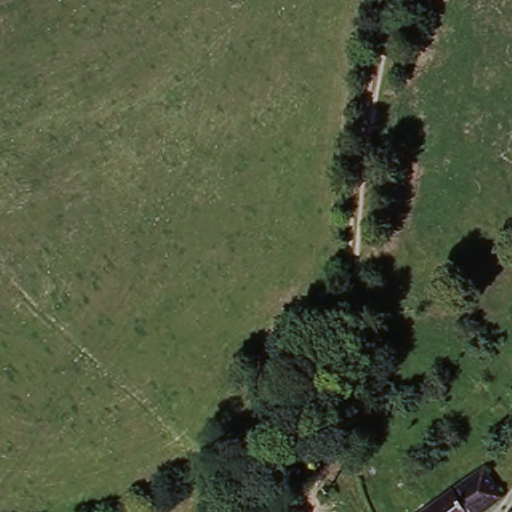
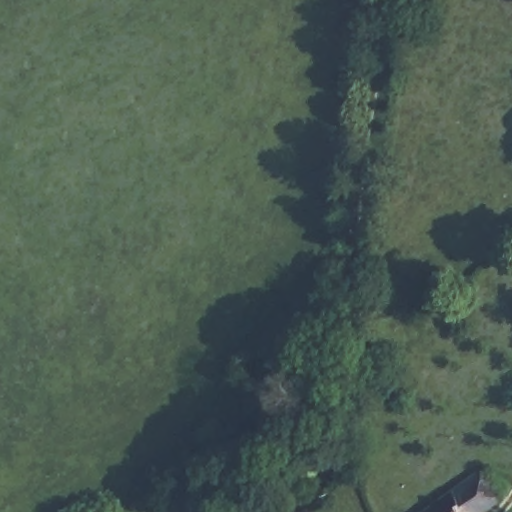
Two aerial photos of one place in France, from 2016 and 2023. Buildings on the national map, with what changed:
unchanged [(507,502),(493,512),(468,512),(456,497),(486,474),(507,502)]
unchanged [(281,498),(273,506),(264,506),(259,499),(272,486),(281,498)]
unchanged [(436,512),(456,497),(468,512),(436,512)]

